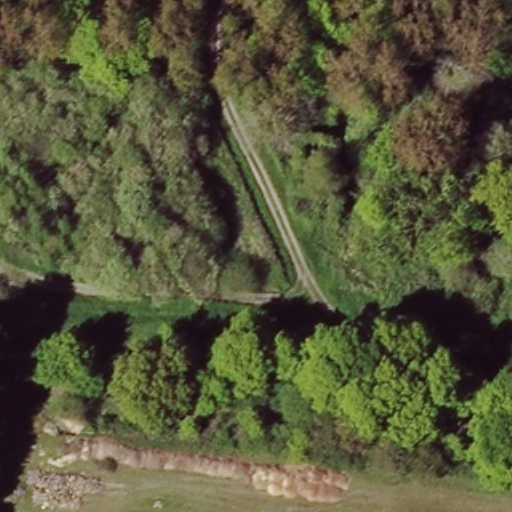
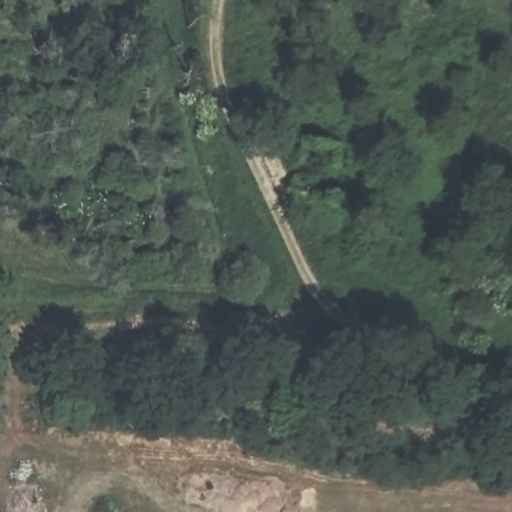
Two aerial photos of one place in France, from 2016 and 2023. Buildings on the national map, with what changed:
unchanged [(338,194),(346,195),(343,218),(299,212),(310,138),(346,143),(338,194)]

